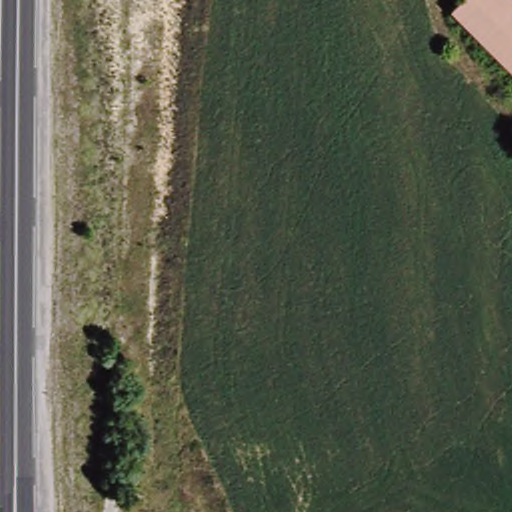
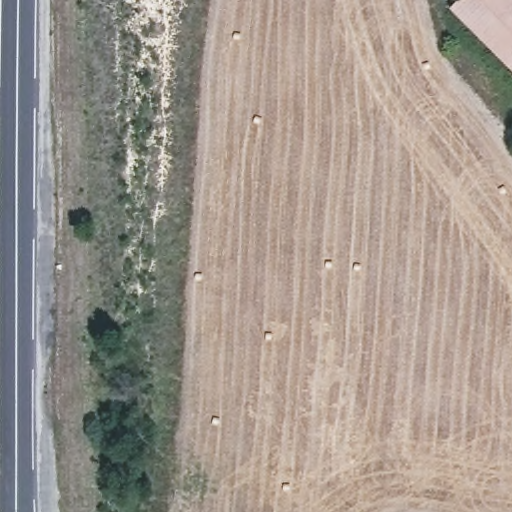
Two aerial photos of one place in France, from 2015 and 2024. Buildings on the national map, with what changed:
unchanged [(452,10),(462,0),(512,0),(512,70),(452,10)]

